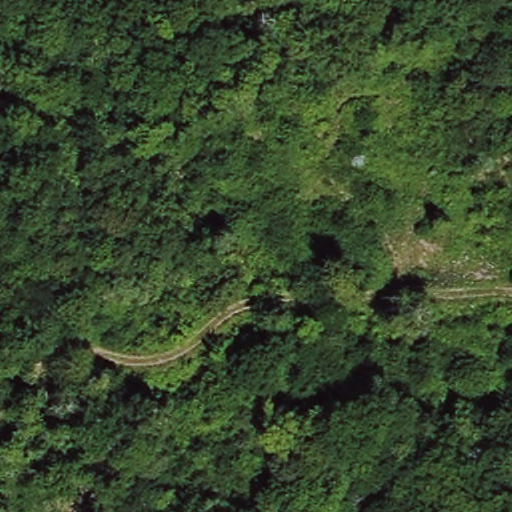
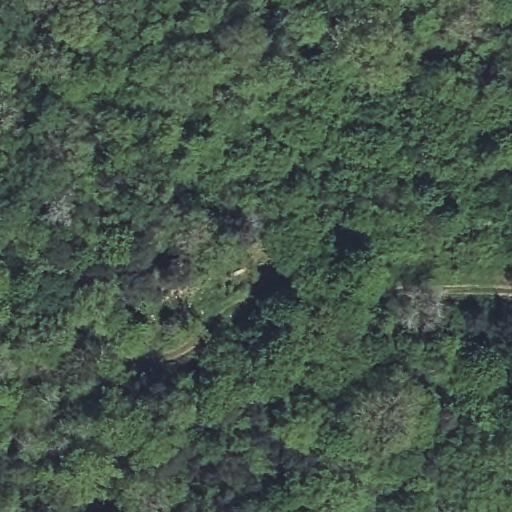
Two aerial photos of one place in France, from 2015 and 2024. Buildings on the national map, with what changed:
unchanged [(201,271),(211,296),(157,317),(148,294),(201,271)]
unchanged [(243,320),(223,328),(211,296),(233,284),(243,320)]

